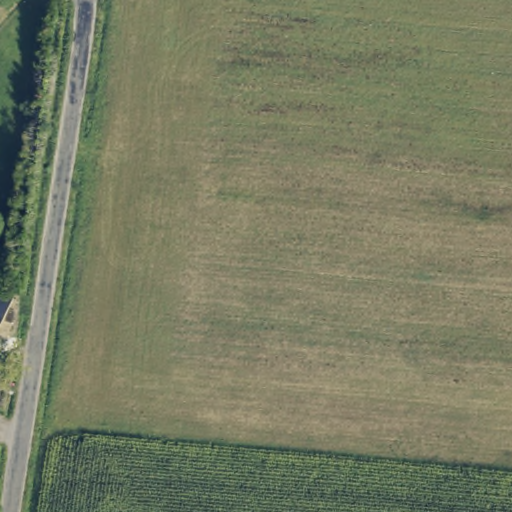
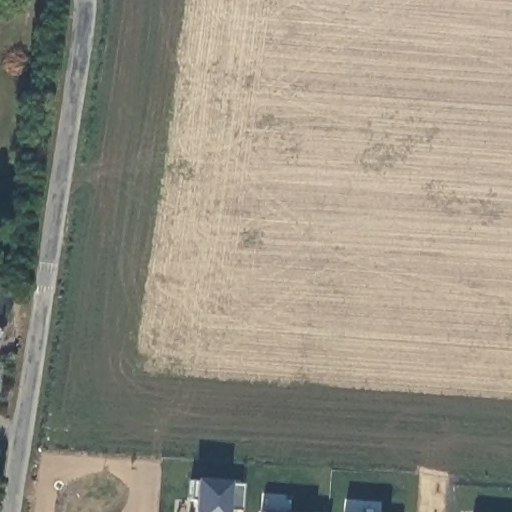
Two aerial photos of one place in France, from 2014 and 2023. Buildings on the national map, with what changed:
unchanged [(16,295),(0,328),(0,288),(16,295)]
new [(244,512),(187,512),(189,477),(244,481),(244,512)]

